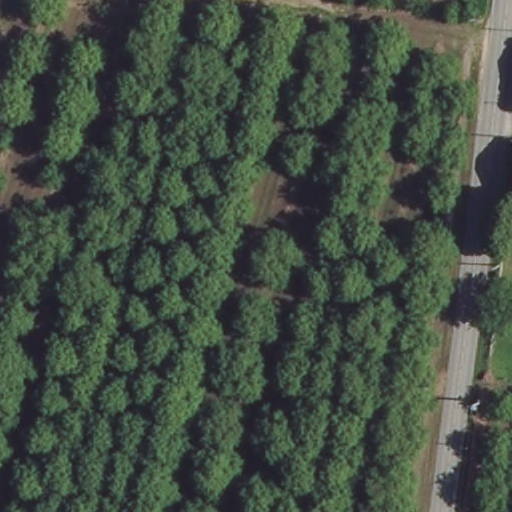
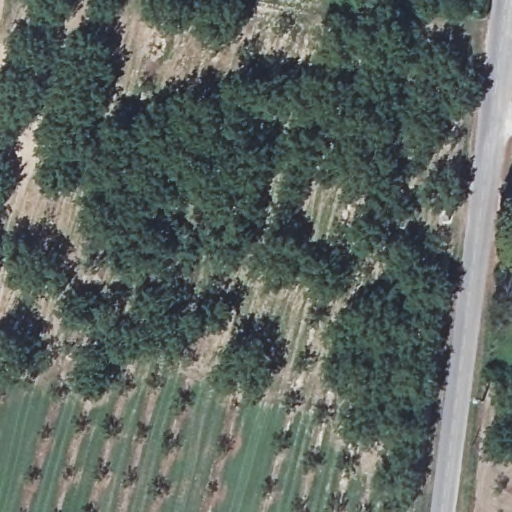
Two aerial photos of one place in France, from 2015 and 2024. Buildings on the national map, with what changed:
unchanged [(512,361),(512,371),(511,371),(512,361)]

